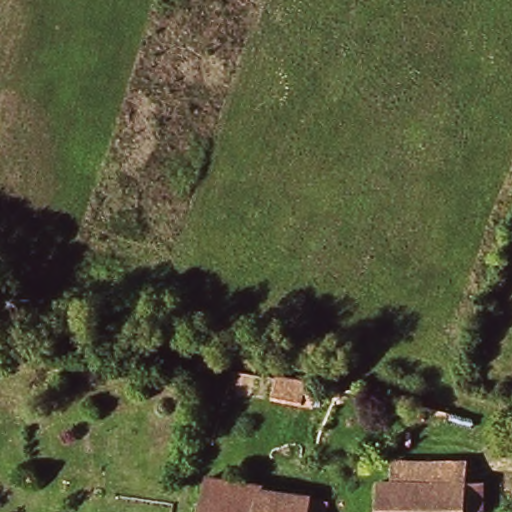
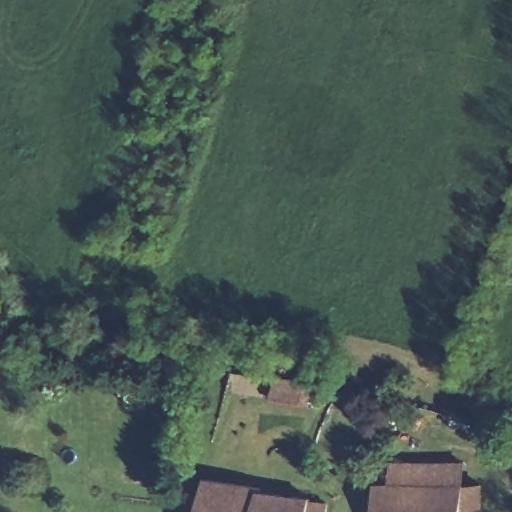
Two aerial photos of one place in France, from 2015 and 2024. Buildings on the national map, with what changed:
unchanged [(315,383),(312,406),(302,404),(271,400),(276,378),(315,383)]
unchanged [(399,465),(470,464),(470,484),(400,486),(399,465)]
unchanged [(208,480),(262,484),(260,492),(257,512),(203,512),(208,480)]
unchanged [(384,486),(400,486),(470,484),(485,484),(485,512),(384,512),(384,486)]
unchanged [(312,512),(257,512),(260,492),(313,498),(312,512)]

